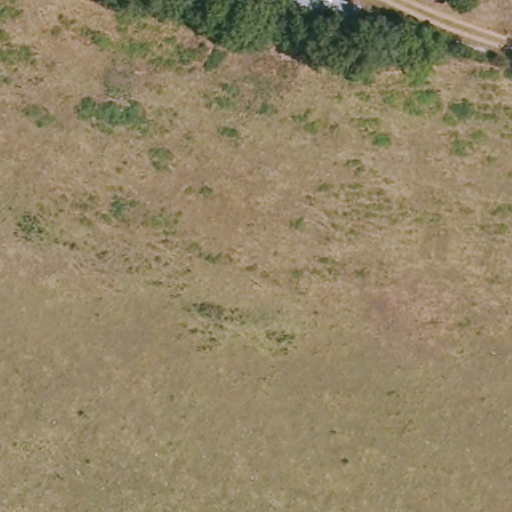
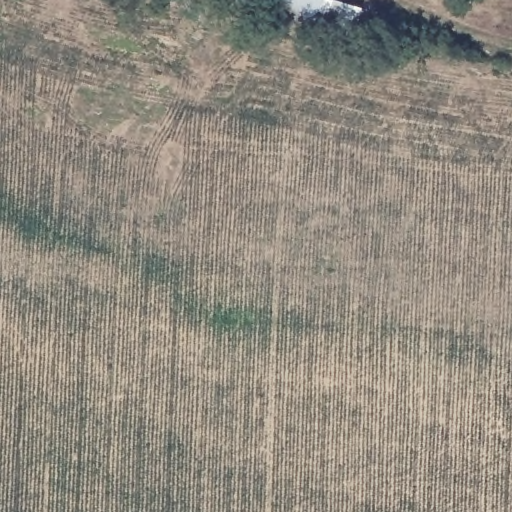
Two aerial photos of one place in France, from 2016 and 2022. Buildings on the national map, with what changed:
unchanged [(363,2),(355,36),(214,3),(215,0),(353,0),(363,2)]

